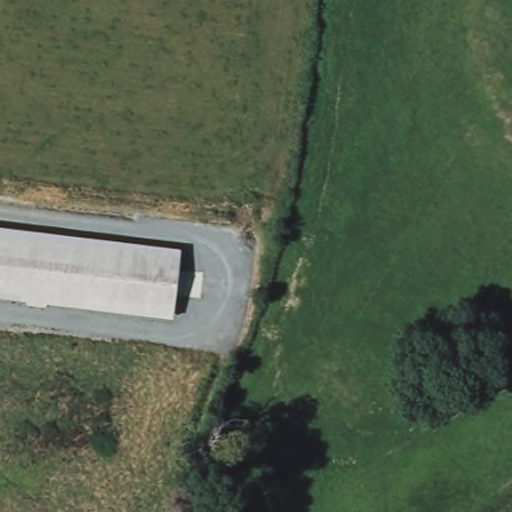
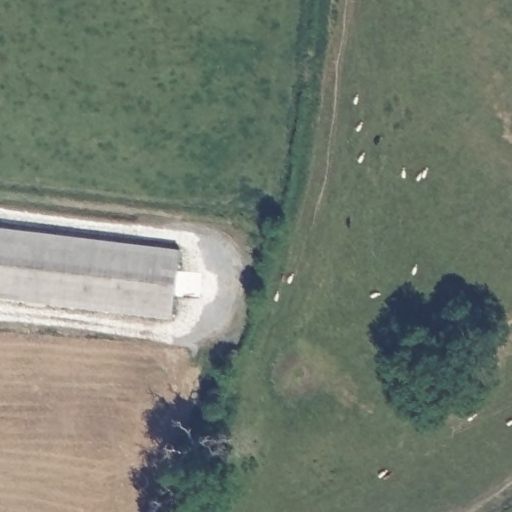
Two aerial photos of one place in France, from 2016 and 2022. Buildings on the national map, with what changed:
unchanged [(180,249),(170,318),(0,297),(0,227),(180,249)]

